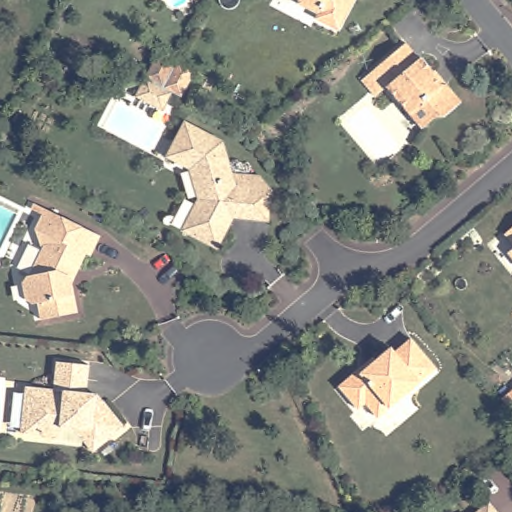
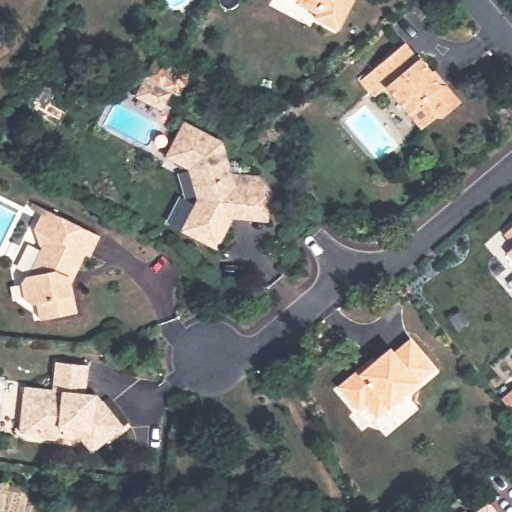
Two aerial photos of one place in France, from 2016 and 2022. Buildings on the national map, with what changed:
unchanged [(315,21),(318,17),(298,6),(299,2),(294,0),(355,0),(338,32),(315,21)]
unchanged [(437,87),(445,87),(460,103),(447,117),(435,117),(421,129),(385,87),(374,97),(360,80),(402,45),(437,87)]
unchanged [(137,94),(146,76),(159,49),(177,58),(195,67),(181,94),(173,89),(163,107),(137,94)]
unchanged [(175,141),(172,139),(182,120),(218,139),(234,167),(258,177),(267,190),(259,217),(240,212),(232,227),(235,228),(227,247),(188,229),(204,196),(187,167),(168,157),(175,141)]
unchanged [(34,309),(30,310),(22,305),(19,289),(23,282),(25,282),(42,242),(29,235),(39,215),(94,242),(84,262),(80,260),(72,276),(68,274),(65,282),(72,318),(50,323),(38,326),(34,309)]
unchanged [(512,230),(512,266),(504,256),(511,249),(503,238),(512,230)]
unchanged [(362,370),(366,373),(394,350),(398,355),(414,341),(439,371),(381,420),(368,406),(360,408),(341,386),(362,370)]
unchanged [(24,391),(54,394),(58,367),(90,370),(86,404),(94,413),(104,405),(125,427),(95,453),(71,426),(61,425),(59,441),(54,441),(54,443),(38,442),(37,438),(20,436),(24,391)]
unchanged [(512,388),(512,405),(503,395),(512,388)]
unchanged [(485,502),(494,512),(473,512),(485,502)]

